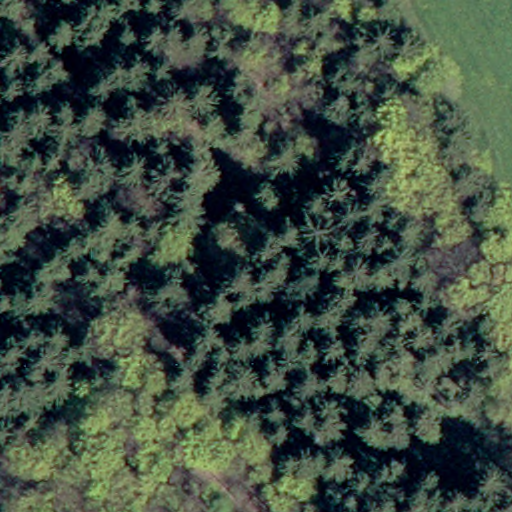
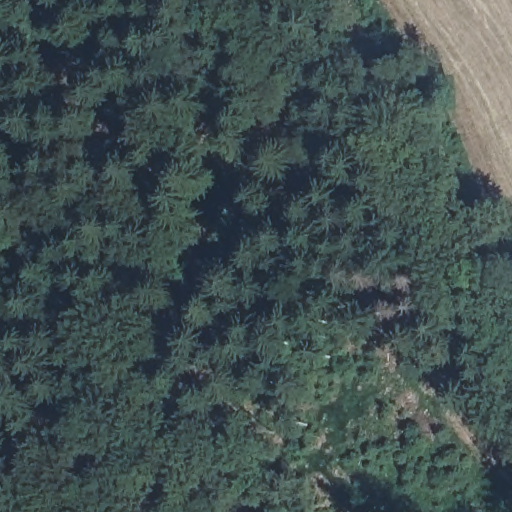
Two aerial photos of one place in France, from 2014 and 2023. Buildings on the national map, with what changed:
[]

